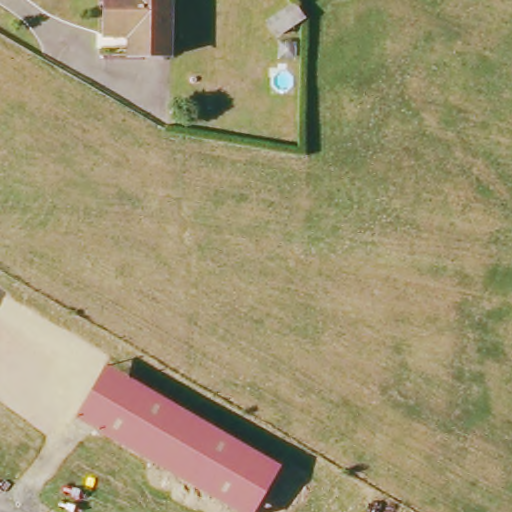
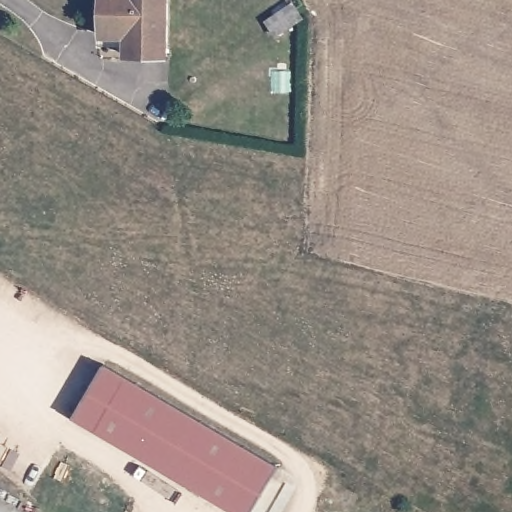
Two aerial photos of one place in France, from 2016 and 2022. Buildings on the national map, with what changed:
unchanged [(169,64),(124,63),(123,45),(100,44),(100,0),(169,0),(169,64)]
unchanged [(302,17),(276,36),(265,21),(292,2),(302,17)]
unchanged [(220,512),(70,420),(105,367),(279,470),(250,512),(220,512)]

